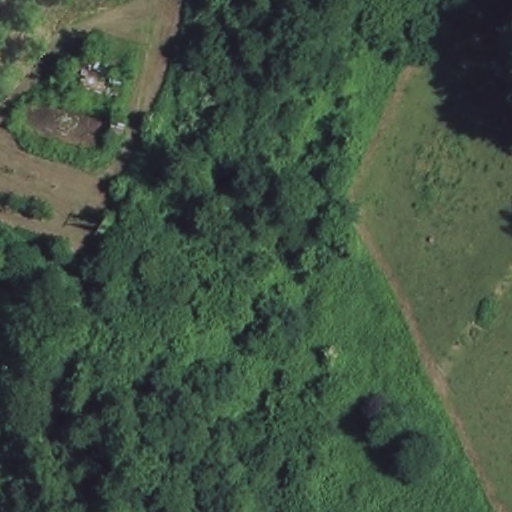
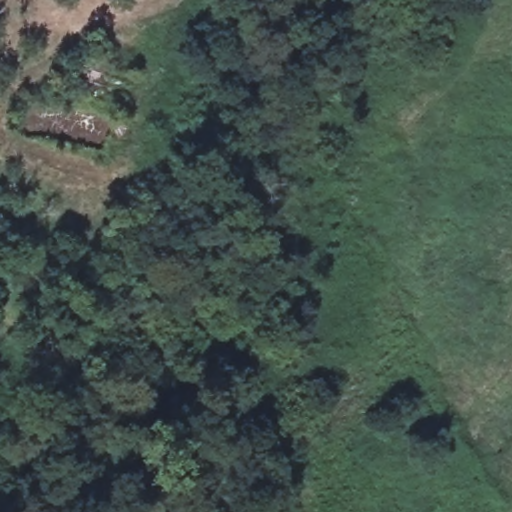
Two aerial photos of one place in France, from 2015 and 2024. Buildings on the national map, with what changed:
unchanged [(70,66),(84,68),(87,56),(118,65),(118,76),(133,81),(127,101),(68,85),(70,66)]

